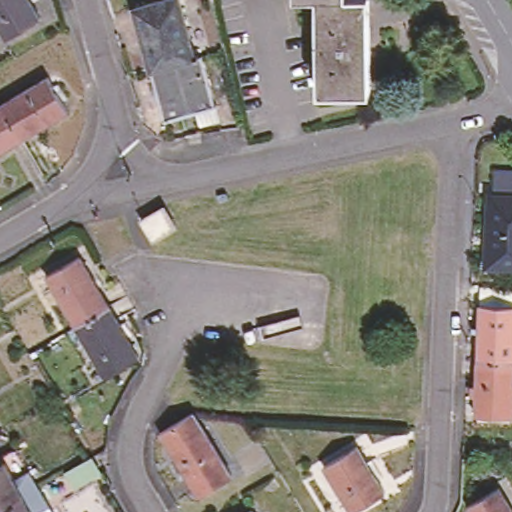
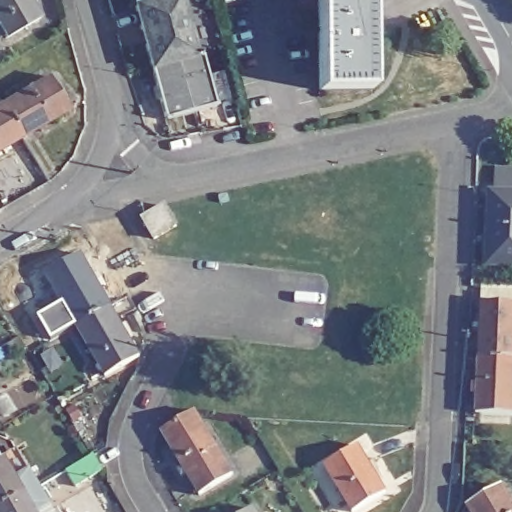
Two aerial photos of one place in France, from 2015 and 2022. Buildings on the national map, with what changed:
unchanged [(0,23),(0,0),(27,0),(30,5),(0,23)]
unchanged [(149,0),(180,0),(195,54),(150,65),(134,4),(149,0)]
unchanged [(320,86),(317,0),(369,0),(370,86),(320,86)]
unchanged [(150,65),(195,54),(201,52),(215,104),(166,118),(150,65)]
unchanged [(43,73),(63,106),(17,134),(0,104),(0,99),(43,73)]
unchanged [(0,144),(0,104),(17,134),(0,144)]
unchanged [(491,185),(512,187),(512,257),(486,255),(491,185)]
unchanged [(175,228),(153,241),(141,222),(163,208),(175,228)]
unchanged [(70,323),(40,270),(74,252),(103,303),(70,323)]
unchanged [(512,298),(512,352),(473,350),(475,298),(512,298)]
unchanged [(134,352),(99,374),(70,323),(103,303),(134,352)]
unchanged [(512,352),(512,359),(508,408),(472,406),(473,350),(512,352)]
unchanged [(199,493),(170,446),(160,430),(193,410),(203,427),(231,473),(199,493)]
unchanged [(385,494),(355,512),(351,512),(323,467),(356,447),(385,494)]
unchanged [(5,459),(20,451),(39,484),(56,512),(0,512),(0,462),(5,459)]
unchanged [(100,473),(75,487),(66,473),(90,459),(100,473)]
unchanged [(512,512),(470,512),(465,504),(500,482),(512,504),(512,512)]
unchanged [(252,511),(253,512),(250,512),(252,511)]

